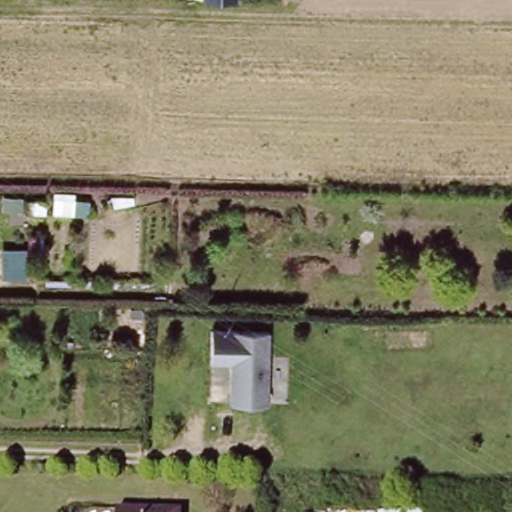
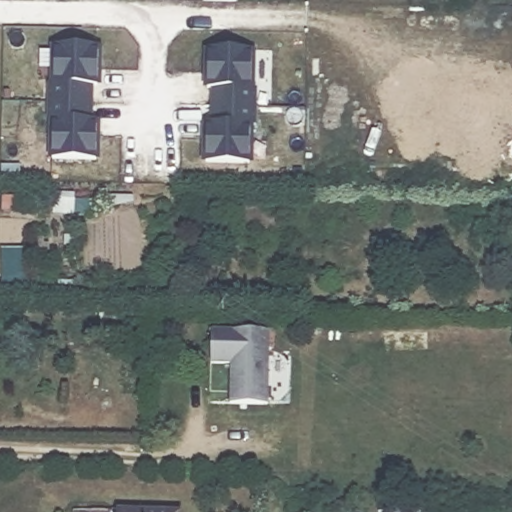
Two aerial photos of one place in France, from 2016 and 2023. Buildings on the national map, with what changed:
unchanged [(237,0),(236,4),(202,2),(202,0),(237,0)]
new [(101,86),(93,85),(94,120),(100,120),(100,160),(51,158),(52,124),(46,124),(48,78),(53,79),(54,46),(103,46),(101,86)]
new [(201,161),(203,122),(209,123),(211,89),(206,89),(206,50),(256,51),(254,85),(258,86),(257,126),(253,125),(253,164),(201,161)]
new [(24,248),(25,278),(0,279),(0,249),(24,248)]
unchanged [(225,402),(225,383),(225,364),(203,363),(203,324),(266,326),(264,383),(264,403),(225,402)]
unchanged [(187,512),(125,512),(125,504),(187,506),(187,512)]
unchanged [(377,510),(424,509),(424,512),(377,512),(377,510)]

